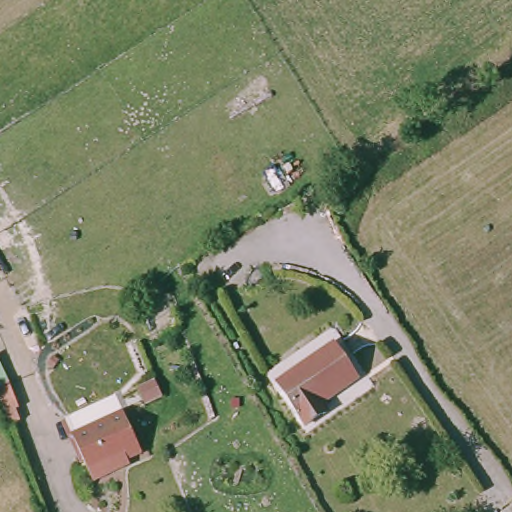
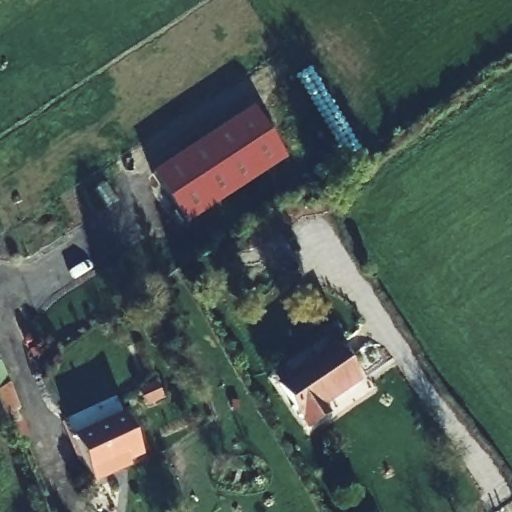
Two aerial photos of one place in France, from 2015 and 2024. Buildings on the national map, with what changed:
new [(158,173),(156,169),(253,106),(286,159),(186,225),(154,176),(158,173)]
unchanged [(355,376),(318,405),(324,415),(306,427),(276,385),(332,344),(355,376)]
unchanged [(12,399),(6,403),(11,413),(0,418),(0,378),(1,377),(12,399)]
unchanged [(163,399),(168,413),(150,420),(144,405),(163,399)]
unchanged [(137,461),(111,469),(113,475),(88,481),(70,433),(123,416),(137,461)]

